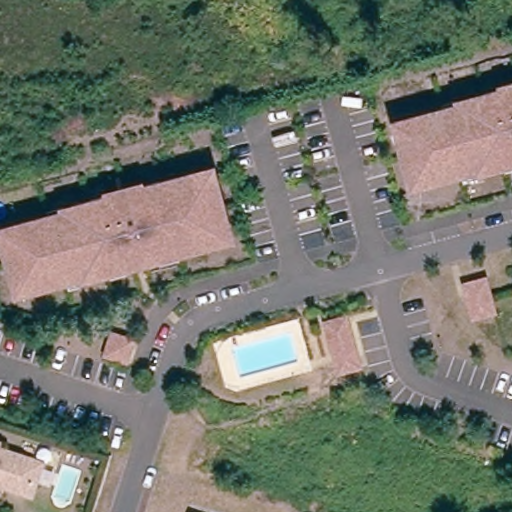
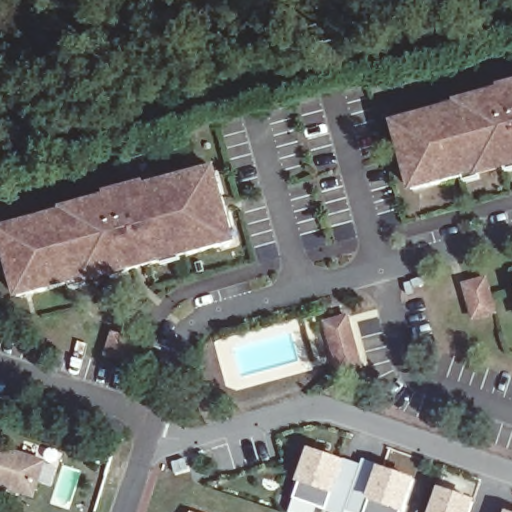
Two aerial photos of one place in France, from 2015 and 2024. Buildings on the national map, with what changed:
unchanged [(392,136),(389,128),(403,124),(442,113),(454,109),(482,101),(480,96),(496,92),(512,88),(512,168),(502,170),(501,169),(473,177),(460,180),(421,190),(408,194),(405,185),(392,136)]
unchanged [(0,227),(4,226),(43,215),(55,212),(83,204),(81,199),(97,194),(134,184),(149,180),(149,183),(191,172),(205,168),(209,183),(220,226),(224,240),(210,244),(169,255),(152,260),(151,259),(120,268),(103,273),(102,272),(74,279),(61,283),(22,293),(9,296),(6,288),(0,265),(0,227)]
unchanged [(462,286),(486,280),(496,318),(470,324),(462,286)]
unchanged [(347,317),(360,367),(339,373),(325,323),(347,317)]
unchanged [(140,344),(133,364),(112,358),(119,337),(140,344)]
new [(346,461),(359,465),(362,459),(377,466),(414,479),(403,512),(346,512),(345,512),(328,512),(291,499),(297,483),(308,449),(346,461)]
unchanged [(0,488),(0,453),(43,467),(35,489),(32,499),(23,496),(0,488)]
new [(476,501),(471,512),(428,512),(438,488),(476,501)]

